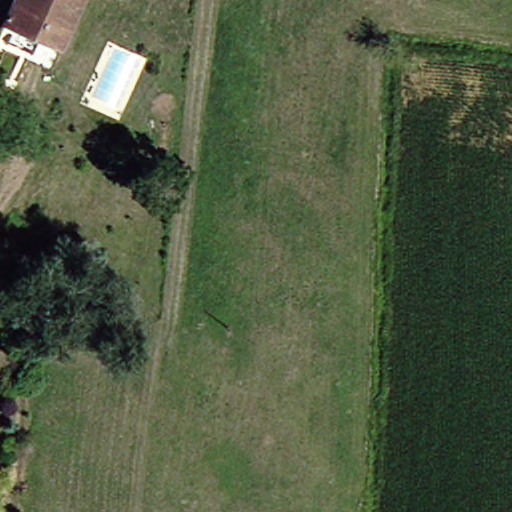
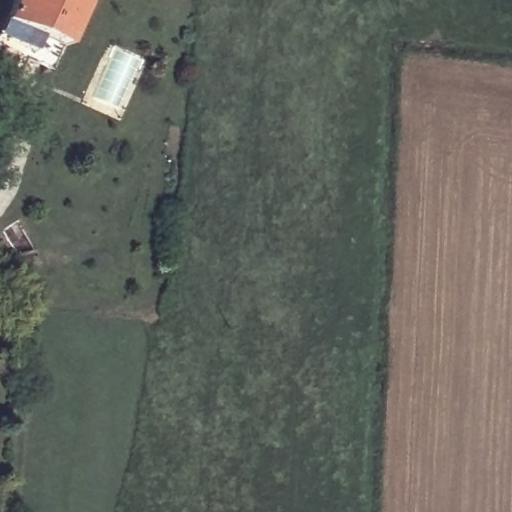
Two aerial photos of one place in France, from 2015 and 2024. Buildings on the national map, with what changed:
unchanged [(26,50),(30,39),(0,25),(0,12),(5,0),(76,0),(50,58),(26,50)]

